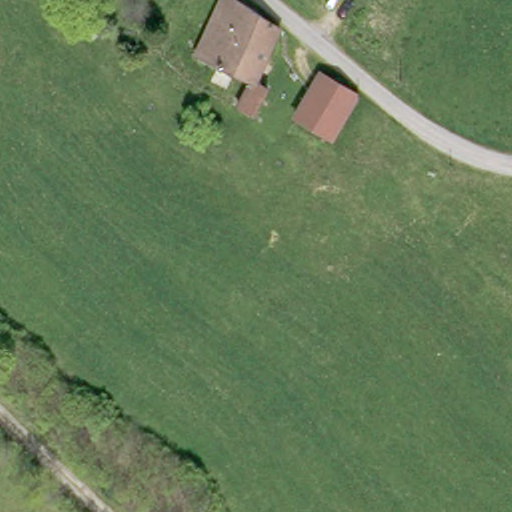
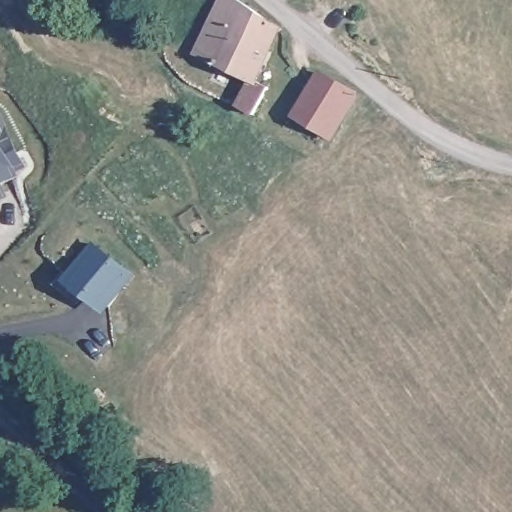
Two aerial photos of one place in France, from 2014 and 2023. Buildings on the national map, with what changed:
unchanged [(236,0),(275,26),(273,31),(251,75),(267,82),(252,114),(237,106),(247,82),(192,57),(217,0),(236,0)]
unchanged [(296,117),(315,76),(356,97),(355,98),(337,136),(296,117)]
new [(19,171),(22,175),(7,181),(12,195),(0,202),(0,110),(28,165),(19,171)]
new [(94,240),(136,272),(106,312),(62,277),(94,240)]

